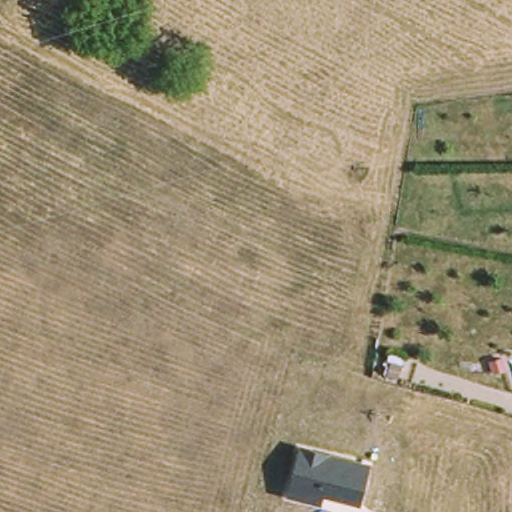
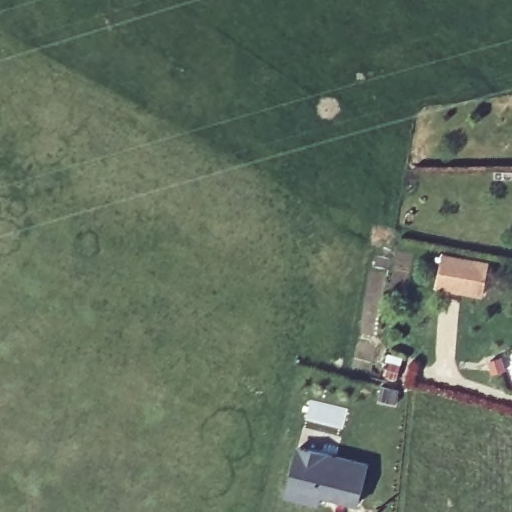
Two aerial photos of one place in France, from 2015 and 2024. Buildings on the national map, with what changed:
new [(442,251),(490,259),(484,296),(434,287),(442,251)]
unchanged [(369,462),(358,505),(321,495),(320,502),(286,495),(296,446),(369,462)]

